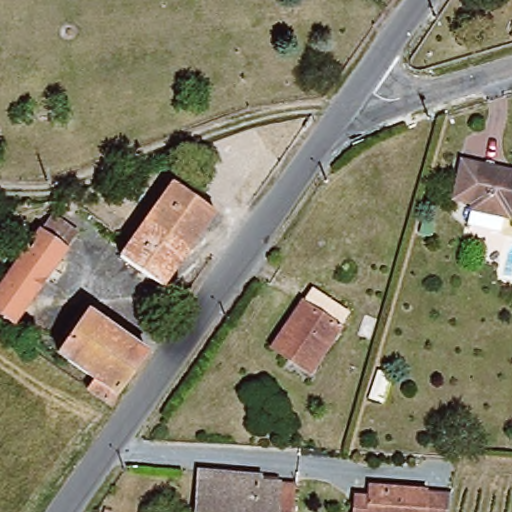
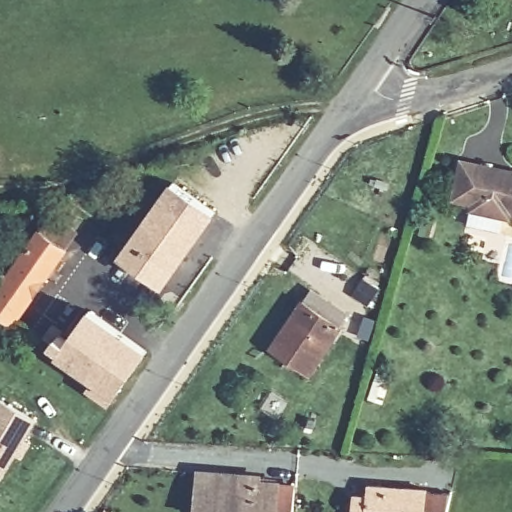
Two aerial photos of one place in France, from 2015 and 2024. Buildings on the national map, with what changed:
unchanged [(500,210),(497,230),(463,224),(466,204),(445,200),(452,159),(512,168),(512,212),(500,210)]
unchanged [(124,257),(132,245),(178,182),(217,209),(172,274),(164,284),(124,257)]
unchanged [(65,212),(59,207),(66,197),(72,202),(65,212)]
unchanged [(0,288),(48,220),(74,239),(10,329),(0,321),(0,288)]
unchanged [(345,315),(307,371),(270,346),(309,290),(345,315)]
unchanged [(59,354),(91,310),(149,351),(109,406),(88,389),(94,379),(59,354)]
new [(14,456),(0,478),(0,401),(34,422),(23,441),(28,444),(18,459),(14,456)]
unchanged [(292,512),(197,512),(200,472),(257,478),(257,485),(294,488),(292,512)]
unchanged [(353,499),(369,501),(370,489),(452,496),(448,512),(353,512),(353,499)]

